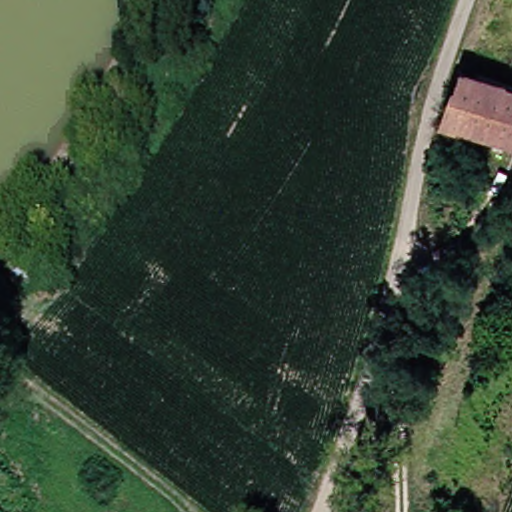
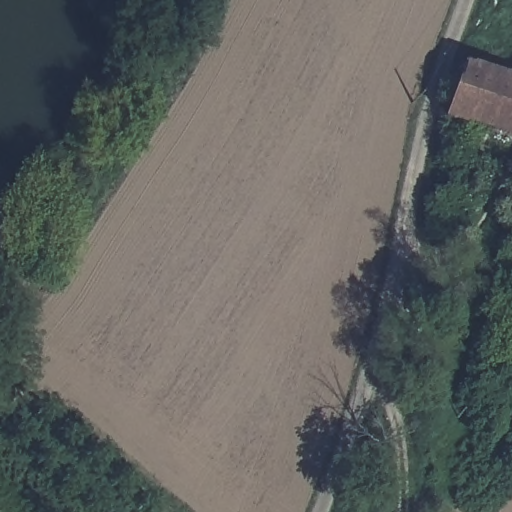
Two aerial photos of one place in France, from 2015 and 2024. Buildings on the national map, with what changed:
unchanged [(512,87),(512,120),(505,143),(432,119),(450,66),(512,87)]
unchanged [(508,171),(512,158),(512,172),(508,171)]
unchanged [(512,216),(512,247),(503,244),(512,216)]

